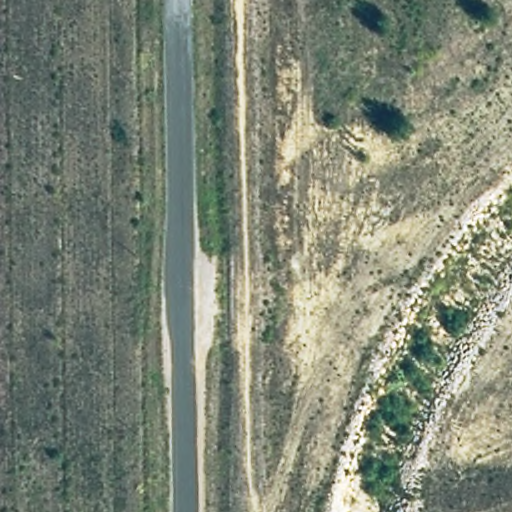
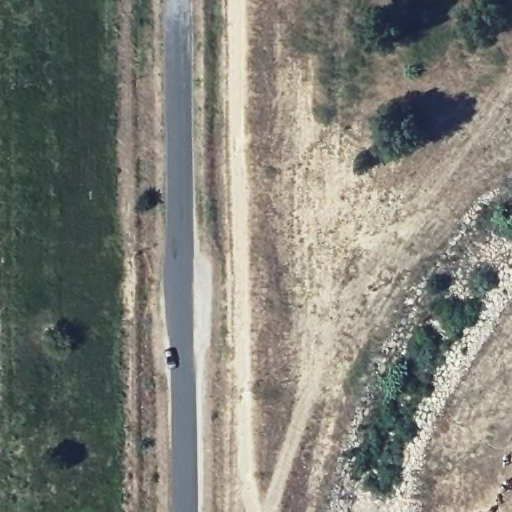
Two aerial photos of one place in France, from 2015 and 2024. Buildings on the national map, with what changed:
[]

